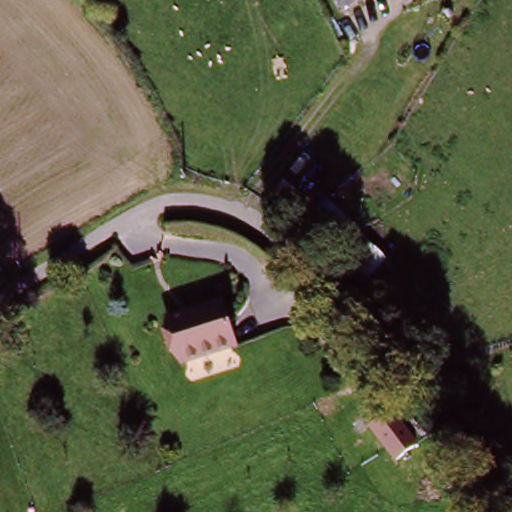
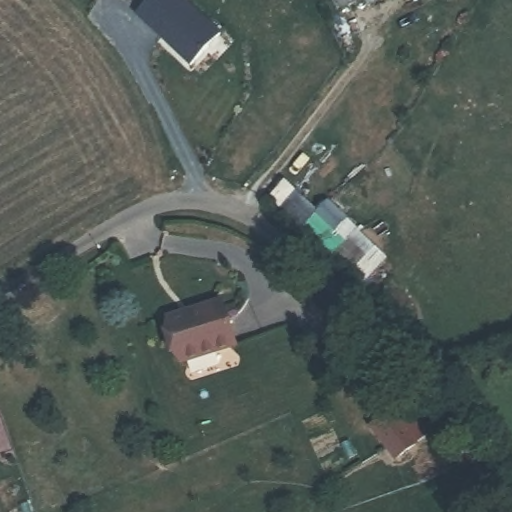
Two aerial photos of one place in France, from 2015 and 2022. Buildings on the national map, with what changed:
new [(183,0),(218,36),(188,66),(133,12),(145,0),(183,0)]
unchanged [(337,0),(352,0),(338,4),(337,0)]
unchanged [(284,162),(298,148),(320,171),(305,186),(284,162)]
unchanged [(281,208),(294,194),(312,210),(324,200),(372,248),(350,273),(281,208)]
unchanged [(179,363),(166,327),(195,315),(192,310),(216,300),(231,341),(179,363)]

